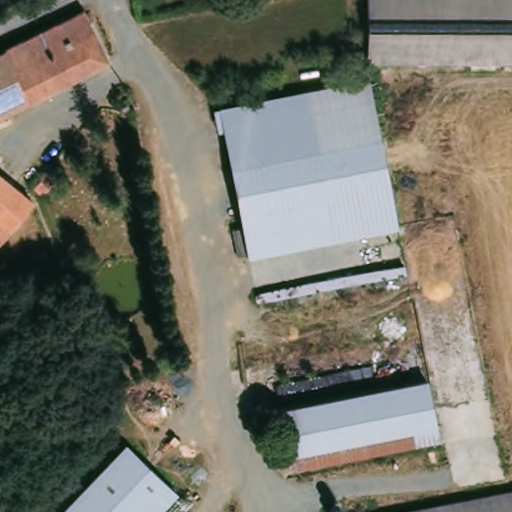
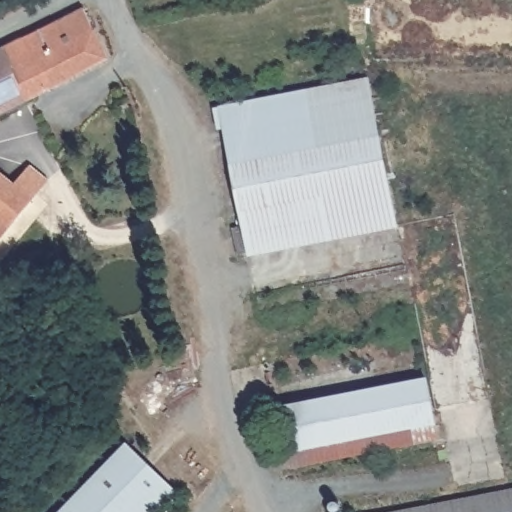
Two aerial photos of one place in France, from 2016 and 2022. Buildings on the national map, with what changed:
demolished [(368,0),(512,0),(512,59),(367,60),(368,0)]
unchanged [(112,60),(31,97),(8,50),(89,12),(90,11),(112,60)]
unchanged [(31,97),(0,112),(0,54),(8,50),(31,97)]
unchanged [(368,80),(397,229),(249,256),(219,110),(368,80)]
unchanged [(36,199),(0,242),(0,168),(36,199)]
unchanged [(432,384),(441,428),(294,460),(284,413),(432,384)]
unchanged [(158,512),(66,512),(132,443),(179,488),(159,510),(158,512)]
unchanged [(512,490),(512,512),(384,512),(436,503),(512,490)]
unchanged [(162,512),(158,512),(159,510),(162,512)]

